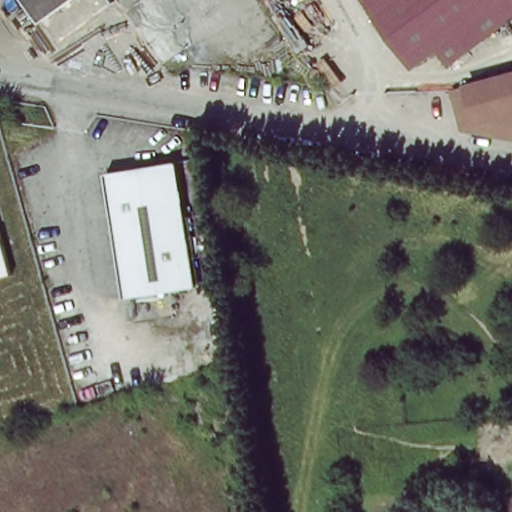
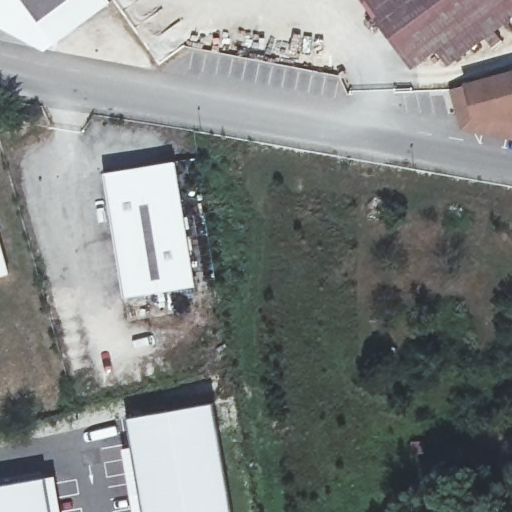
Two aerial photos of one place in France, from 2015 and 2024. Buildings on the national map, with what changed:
unchanged [(13,0),(67,0),(28,23),(13,0)]
unchanged [(412,59),(373,0),(496,0),(433,44),(412,59)]
unchanged [(433,44),(496,0),(512,0),(512,17),(445,62),(433,44)]
unchanged [(458,83),(512,70),(512,140),(473,132),(458,83)]
unchanged [(105,170),(176,160),(195,284),(125,295),(105,170)]
unchanged [(10,270),(0,273),(0,237),(10,270)]
new [(212,402),(231,512),(140,512),(125,417),(212,402)]
new [(55,474),(61,512),(0,512),(0,484),(55,474)]

